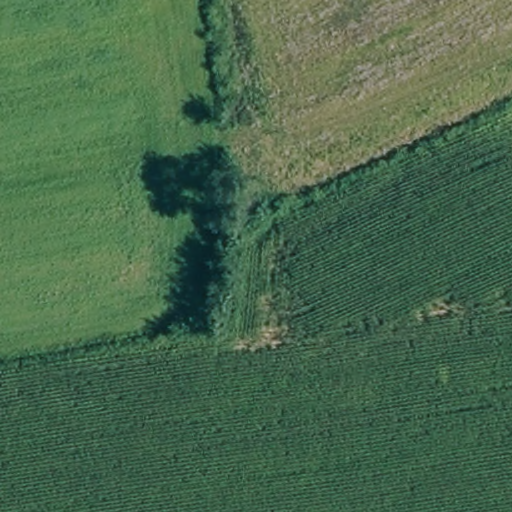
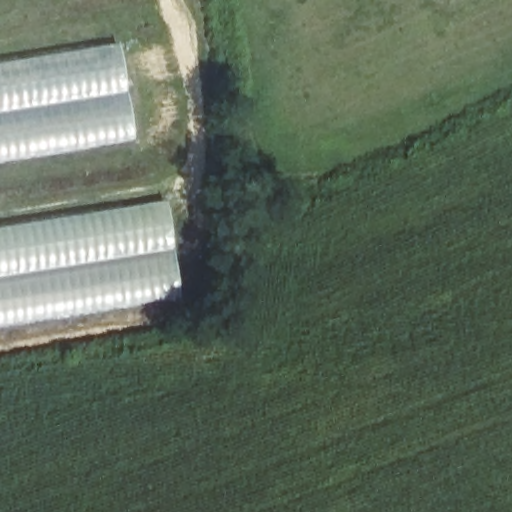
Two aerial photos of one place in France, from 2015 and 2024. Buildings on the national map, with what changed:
new [(115,43),(131,140),(0,161),(0,62),(115,43)]
new [(0,327),(0,227),(163,200),(178,298),(0,327)]

